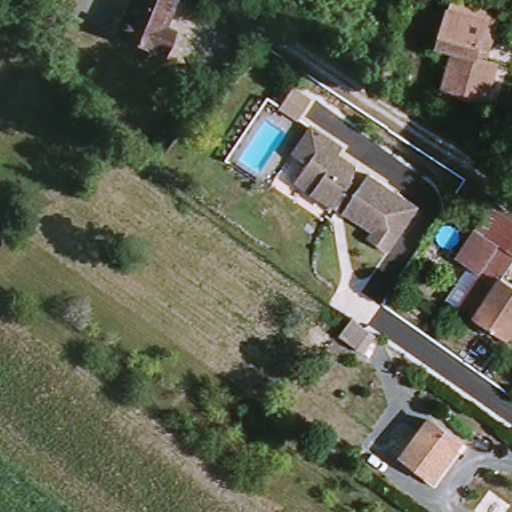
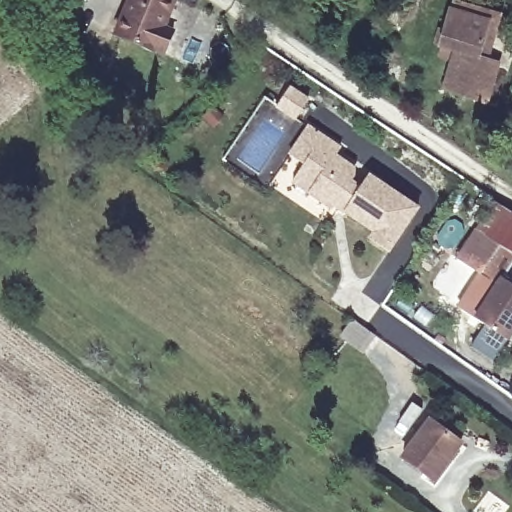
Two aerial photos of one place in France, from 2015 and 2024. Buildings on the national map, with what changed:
unchanged [(174,22),(184,26),(174,48),(165,44),(164,45),(125,29),(138,0),(184,0),(174,22)]
unchanged [(512,11),(512,33),(503,57),(491,53),(502,22),(465,8),(468,0),(481,0),(512,11)]
unchanged [(512,68),(501,101),(453,83),(467,47),(453,42),(465,8),(502,22),(491,53),(503,57),(512,61),(512,68)]
unchanged [(333,210),(293,184),(305,166),(290,157),(309,129),(323,138),(341,150),(336,157),(355,170),(354,179),(351,183),(361,190),(369,176),(418,209),(390,253),(370,240),(375,233),(345,214),(336,207),(333,210)]
unchanged [(512,199),(512,242),(488,226),(508,196),(512,199)]
unchanged [(488,226),(512,242),(512,334),(469,304),(459,296),(482,263),(470,255),(488,226)]
unchanged [(365,350),(343,335),(355,317),(358,320),(377,334),(365,350)]
unchanged [(448,416),(475,442),(445,478),(416,455),(448,416)]

